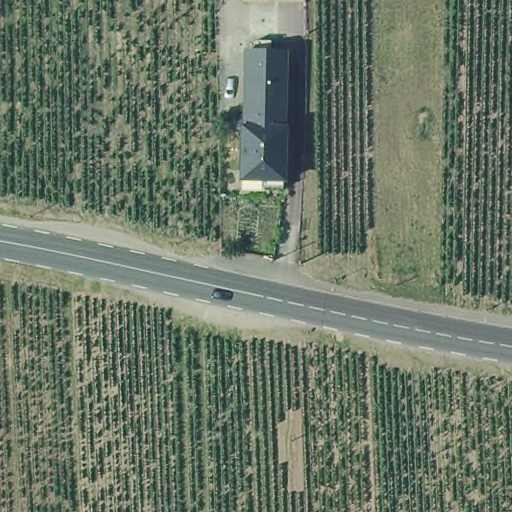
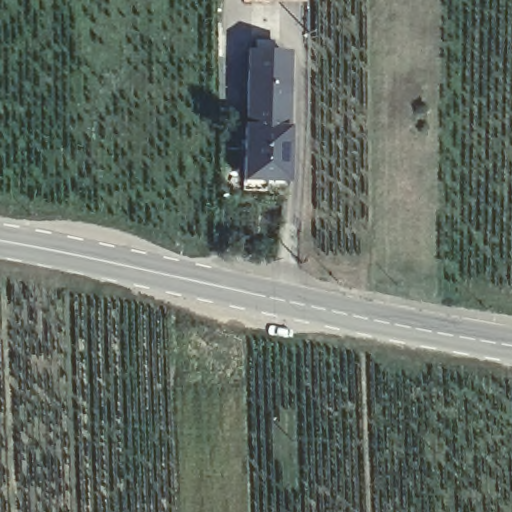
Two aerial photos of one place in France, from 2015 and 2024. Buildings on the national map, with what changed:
unchanged [(273,1),(242,0),(304,0),(304,1),(273,1)]
unchanged [(248,48),(278,48),(278,78),(285,78),(284,125),(246,124),(248,77),(248,48)]
unchanged [(284,125),(287,125),(284,184),(266,184),(266,176),(243,175),(244,124),(246,124),(284,125)]

